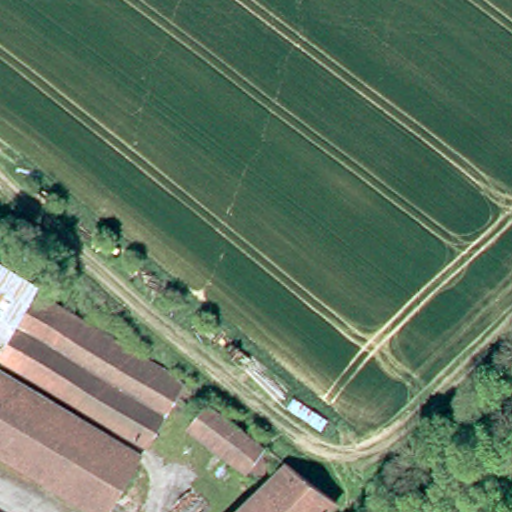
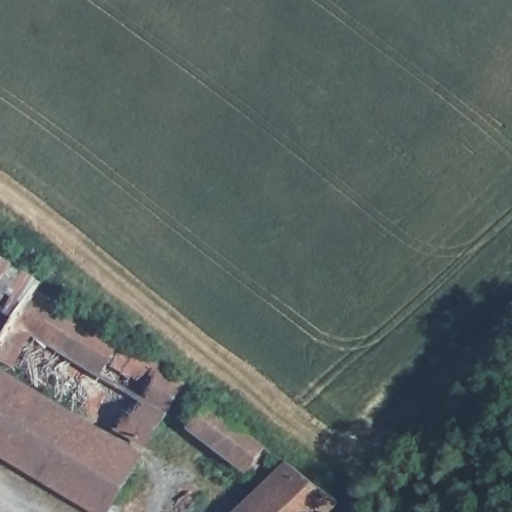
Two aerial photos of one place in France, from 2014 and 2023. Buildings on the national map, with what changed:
unchanged [(34,291),(0,348),(0,257),(40,281),(34,291)]
unchanged [(34,291),(183,383),(148,443),(0,355),(0,348),(34,291)]
unchanged [(135,460),(105,512),(0,449),(0,379),(135,460)]
unchanged [(260,475),(245,464),(190,421),(209,397),(265,440),(280,452),(260,475)]
unchanged [(297,465),(337,496),(321,512),(248,512),(297,465)]

